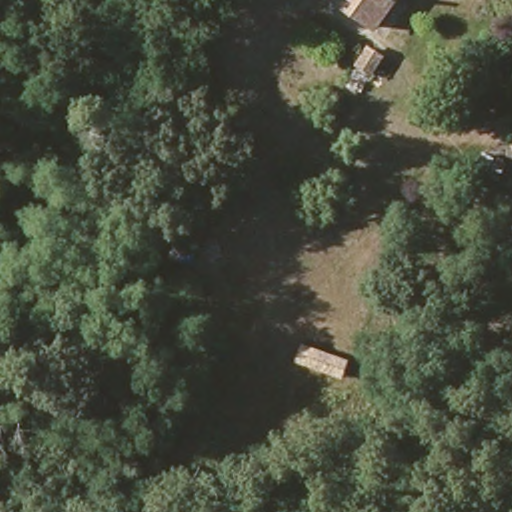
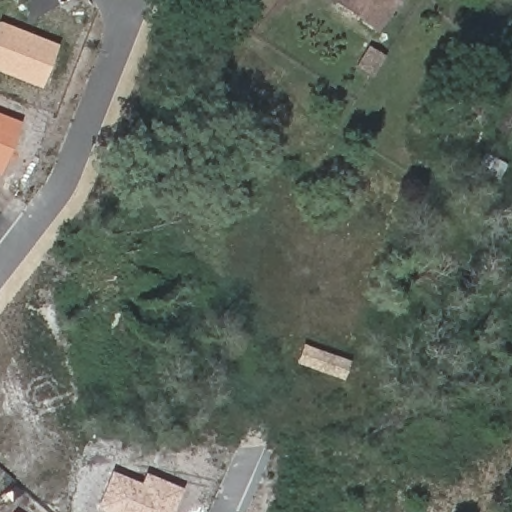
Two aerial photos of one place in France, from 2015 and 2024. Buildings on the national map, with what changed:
unchanged [(339,0),(393,0),(374,29),(339,0)]
new [(55,46),(40,88),(0,73),(0,26),(55,46)]
unchanged [(359,58),(379,69),(368,87),(349,76),(359,58)]
new [(20,122),(0,170),(0,114),(20,122)]
unchanged [(499,171),(488,167),(500,144),(508,148),(512,150),(512,166),(509,175),(499,171)]
unchanged [(351,368),(346,383),(288,361),(296,346),(351,368)]
new [(171,512),(108,512),(96,507),(111,471),(140,483),(144,472),(182,488),(171,512)]

